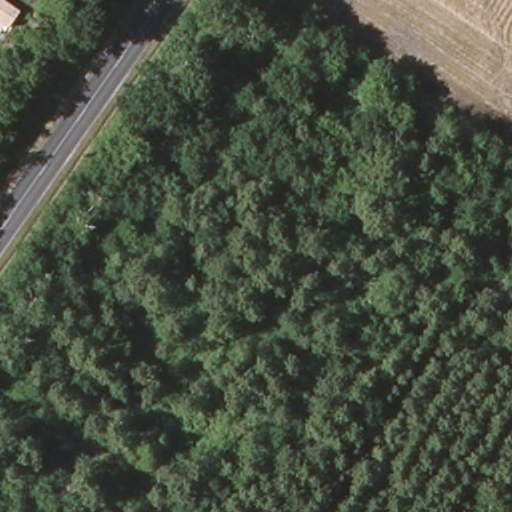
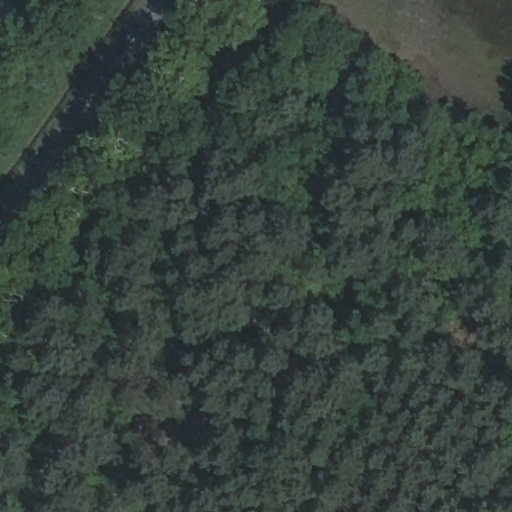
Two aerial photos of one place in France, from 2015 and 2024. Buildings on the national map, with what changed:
unchanged [(0,24),(0,0),(5,0),(22,12),(10,30),(0,24)]

